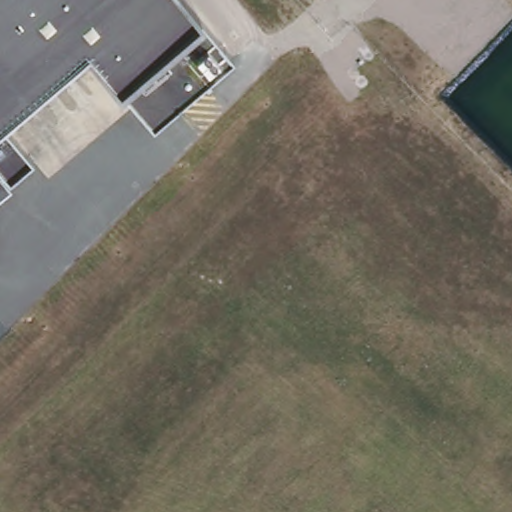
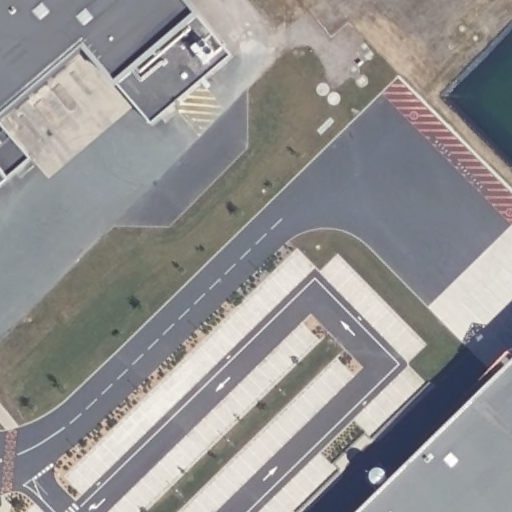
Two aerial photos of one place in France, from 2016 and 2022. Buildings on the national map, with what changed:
unchanged [(233,51),(154,121),(86,44),(1,118),(34,156),(10,177),(0,165),(0,0),(189,0),(233,51)]
unchanged [(10,177),(0,186),(0,165),(10,177)]
new [(512,512),(361,512),(512,364),(512,512)]

